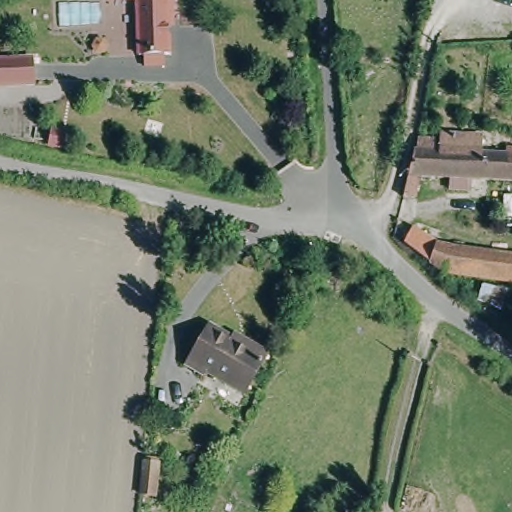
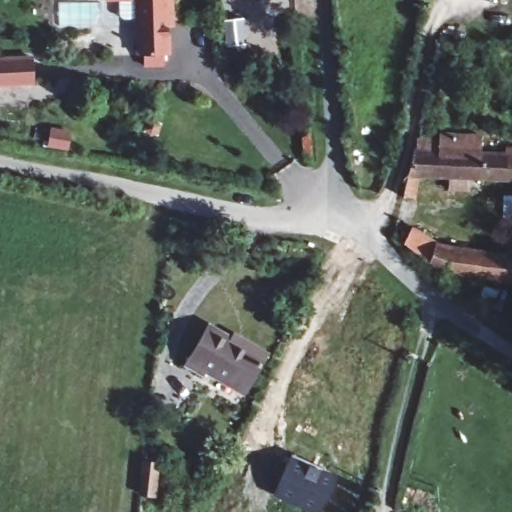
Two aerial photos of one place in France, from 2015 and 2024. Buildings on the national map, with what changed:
unchanged [(167,22),(160,23),(164,58),(157,58),(158,69),(139,70),(138,59),(132,59),(128,1),(97,3),(97,0),(165,0),(167,22)]
unchanged [(40,86),(0,86),(0,59),(40,59),(40,86)]
unchanged [(78,134),(75,147),(55,143),(58,130),(78,134)]
unchanged [(440,153),(441,133),(485,134),(485,155),(440,153)]
unchanged [(406,182),(407,179),(408,174),(413,151),(430,152),(502,156),(500,185),(414,180),(409,203),(402,201),(406,182)]
unchanged [(500,185),(502,156),(512,157),(512,186),(500,185)]
unchanged [(445,276),(394,231),(397,219),(428,241),(432,237),(442,246),(512,255),(512,284),(445,276)]
unchanged [(233,342),(236,336),(264,351),(241,391),(202,368),(199,374),(180,361),(202,324),(233,342)]
new [(312,512),(273,494),(291,454),(337,475),(321,512),(312,512)]
unchanged [(135,496),(139,456),(157,457),(155,497),(135,496)]

